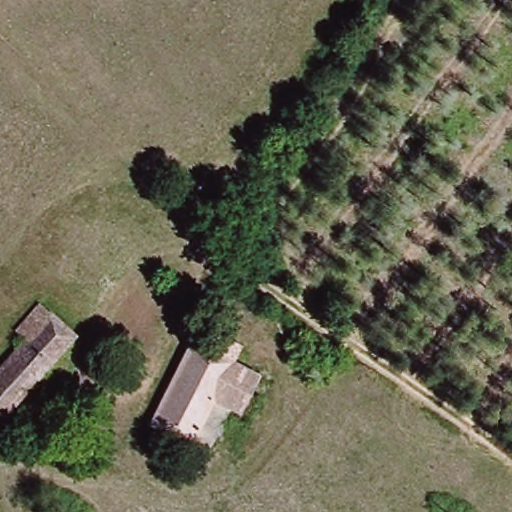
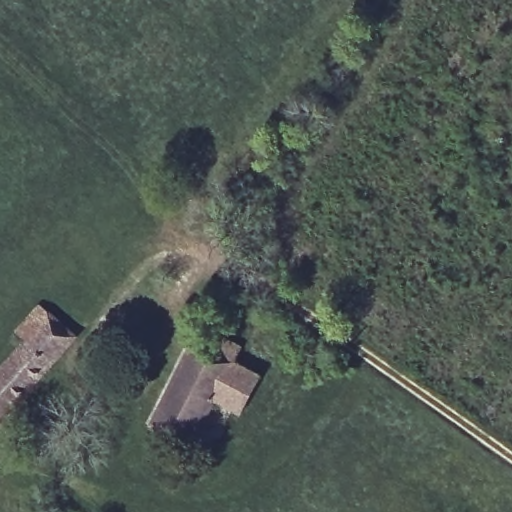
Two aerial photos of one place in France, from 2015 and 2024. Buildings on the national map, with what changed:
unchanged [(0,367),(22,340),(13,332),(36,303),(72,332),(66,340),(0,425),(0,367)]
unchanged [(225,361),(255,375),(235,415),(212,403),(189,450),(149,430),(192,345),(199,348),(209,330),(235,343),(225,361)]

